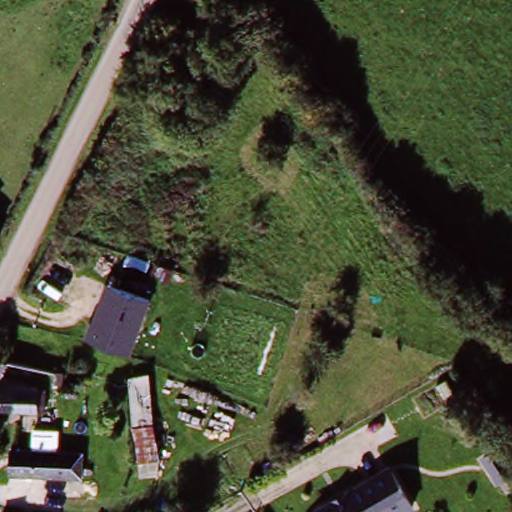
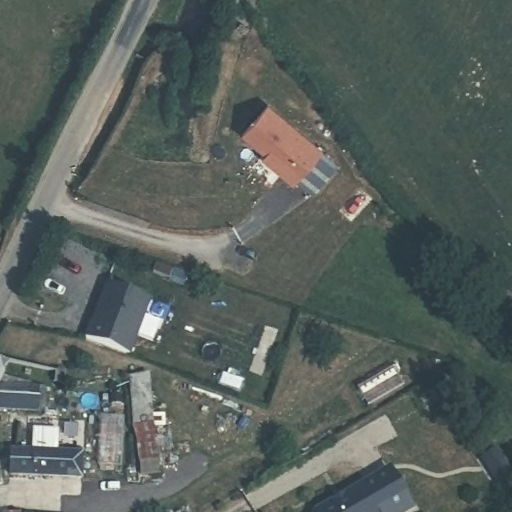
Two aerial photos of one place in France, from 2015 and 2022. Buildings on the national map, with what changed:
new [(317,190),(301,177),(297,182),(271,161),(274,157),(245,133),(270,103),(325,148),(322,152),(337,165),(317,190)]
unchanged [(148,301),(130,356),(82,338),(105,283),(148,301)]
unchanged [(58,380),(7,375),(5,387),(43,391),(43,411),(0,408),(0,357),(60,369),(58,380)]
unchanged [(130,437),(124,378),(148,373),(150,403),(137,404),(141,437),(130,437)]
unchanged [(143,460),(137,404),(155,402),(162,458),(143,460)]
unchanged [(506,478),(488,452),(501,444),(512,459),(512,474),(506,478)]
unchanged [(78,477),(5,474),(5,450),(78,453),(78,477)]
unchanged [(415,507),(407,512),(304,512),(394,466),(415,507)]

